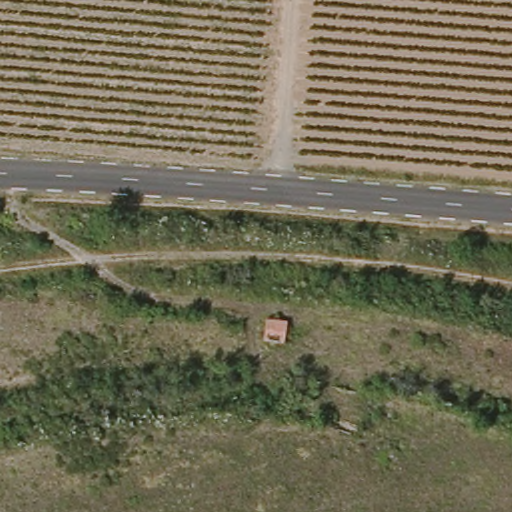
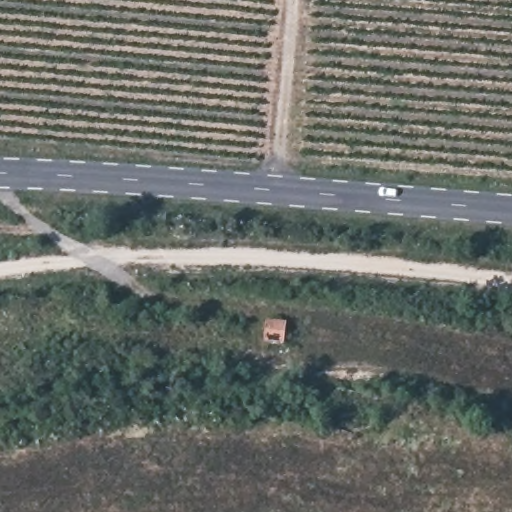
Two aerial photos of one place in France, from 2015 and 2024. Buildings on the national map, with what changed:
unchanged [(285,314),(287,334),(267,339),(267,315),(285,314)]

